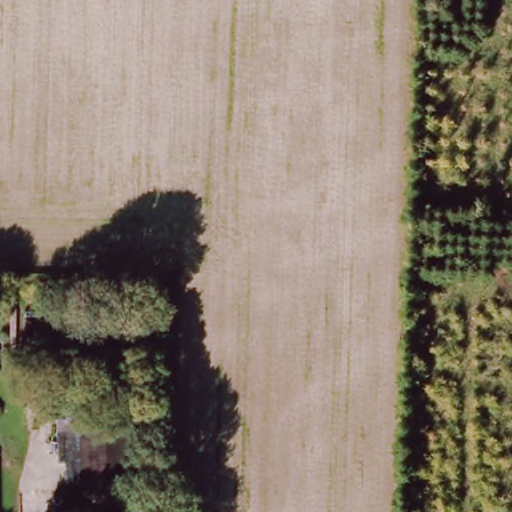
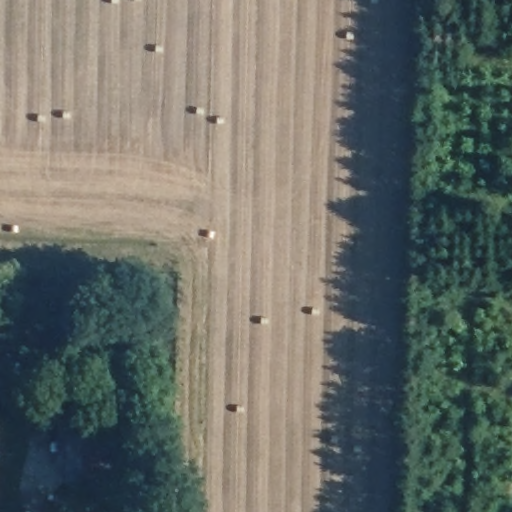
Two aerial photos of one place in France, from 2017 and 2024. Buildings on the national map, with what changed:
unchanged [(74,387),(79,416),(45,422),(40,393),(74,387)]
unchanged [(130,481),(81,481),(81,458),(59,458),(59,432),(130,432),(130,481)]

